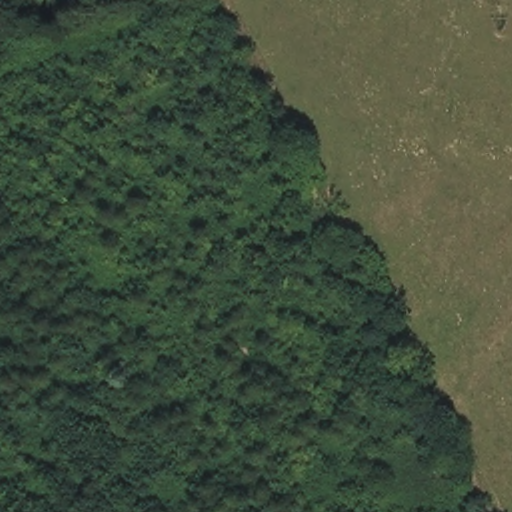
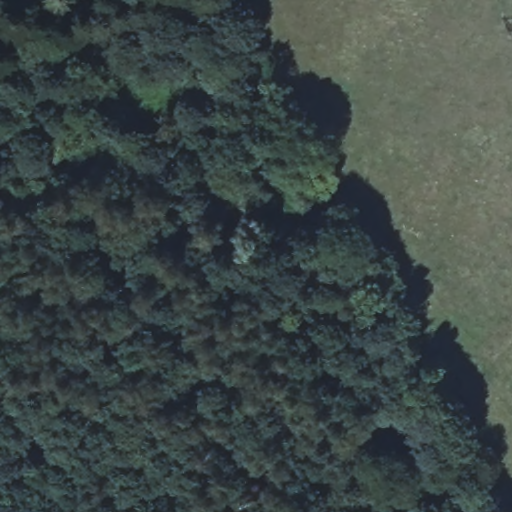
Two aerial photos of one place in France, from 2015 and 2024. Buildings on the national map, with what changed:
[]

